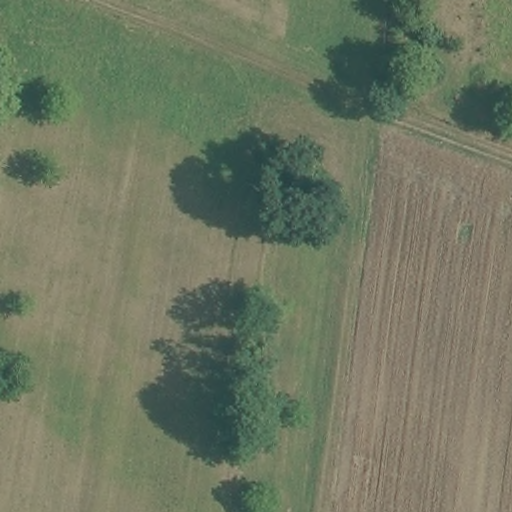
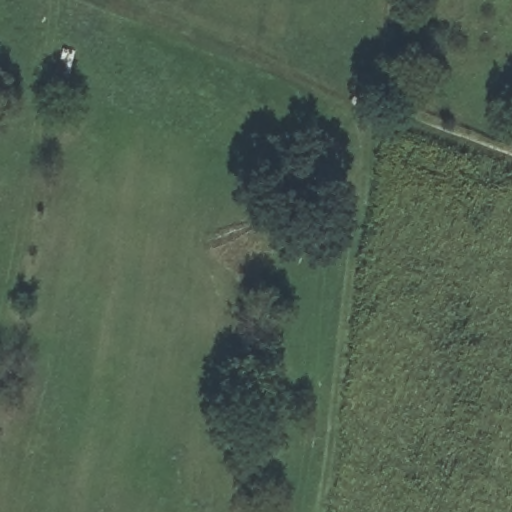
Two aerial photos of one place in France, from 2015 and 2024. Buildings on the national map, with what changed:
[]

